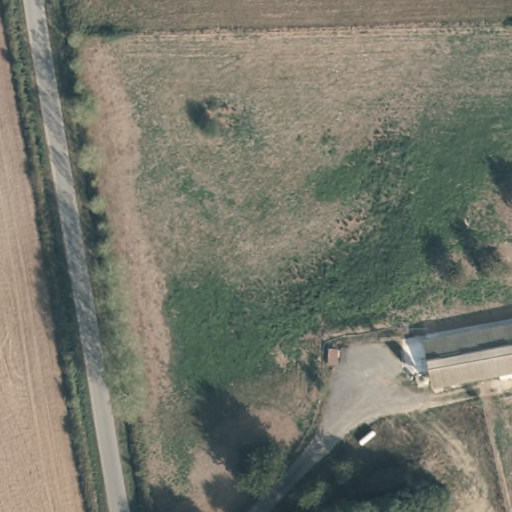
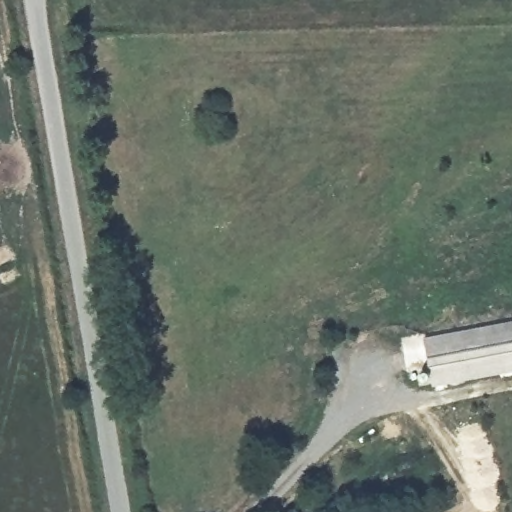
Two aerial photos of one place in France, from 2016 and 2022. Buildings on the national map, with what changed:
unchanged [(512,366),(434,378),(426,329),(512,317),(512,366)]

